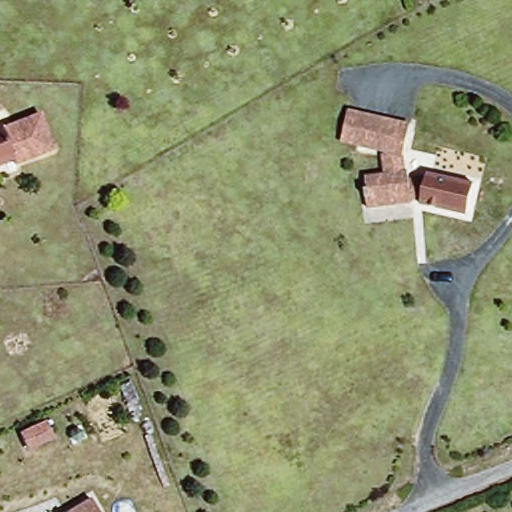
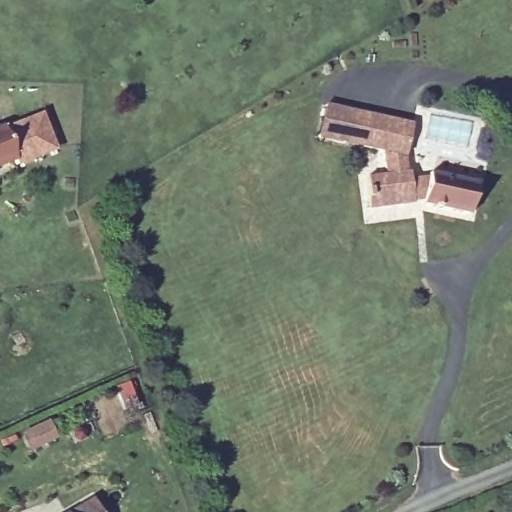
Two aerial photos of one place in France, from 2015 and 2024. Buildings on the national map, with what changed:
unchanged [(422,173),(423,167),(469,176),(464,209),(418,199),(419,191),(408,193),(408,198),(364,205),(361,185),(363,185),(361,174),(381,170),(378,148),(356,143),(337,139),(344,108),(363,112),(403,120),(397,151),(399,166),(404,166),(404,175),(422,173)]
unchanged [(47,146),(8,162),(6,157),(0,159),(0,124),(32,110),(47,146)]
unchanged [(86,493),(97,512),(55,512),(86,493)]

